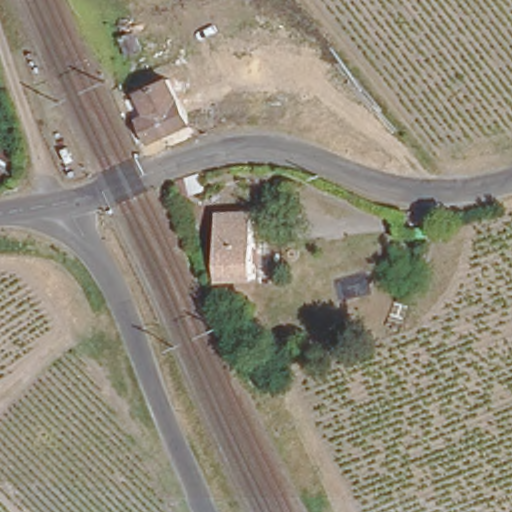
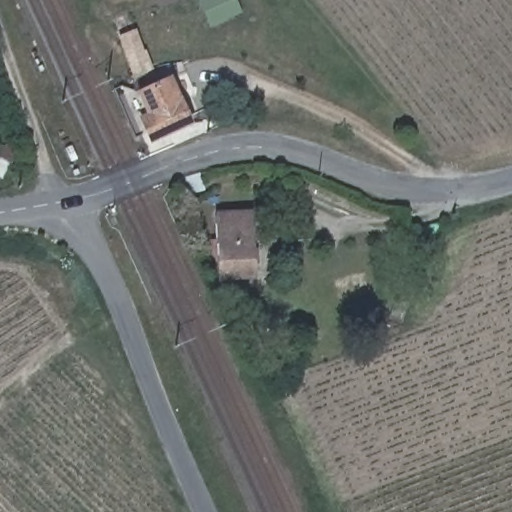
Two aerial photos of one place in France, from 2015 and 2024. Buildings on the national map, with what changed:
unchanged [(196,122),(153,141),(137,116),(151,114),(135,90),(174,76),(196,122)]
unchanged [(192,188),(173,194),(166,179),(187,173),(192,188)]
unchanged [(255,278),(220,279),(218,274),(215,213),(253,212),(255,278)]

